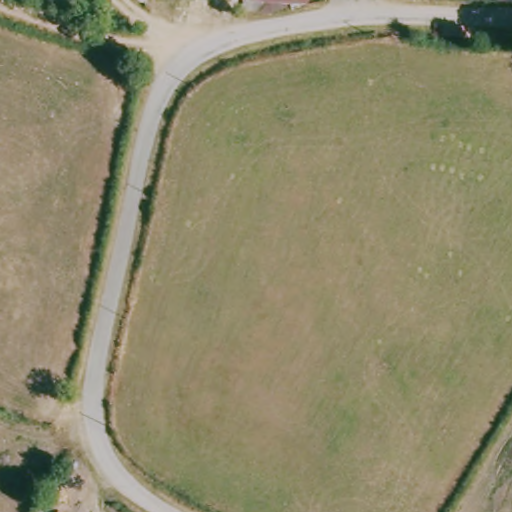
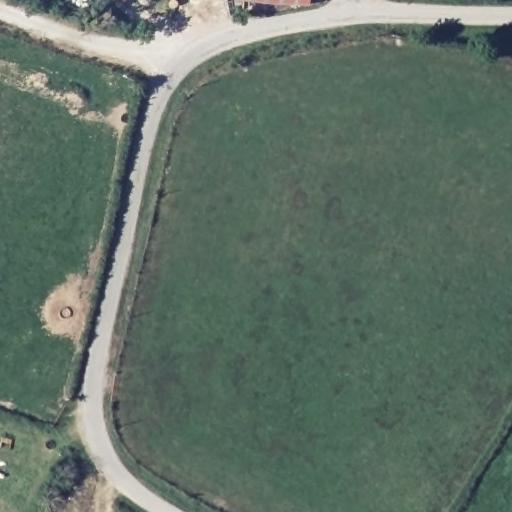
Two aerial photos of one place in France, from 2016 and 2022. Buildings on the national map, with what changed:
unchanged [(311,4),(276,6),(239,0),(311,0),(311,4)]

